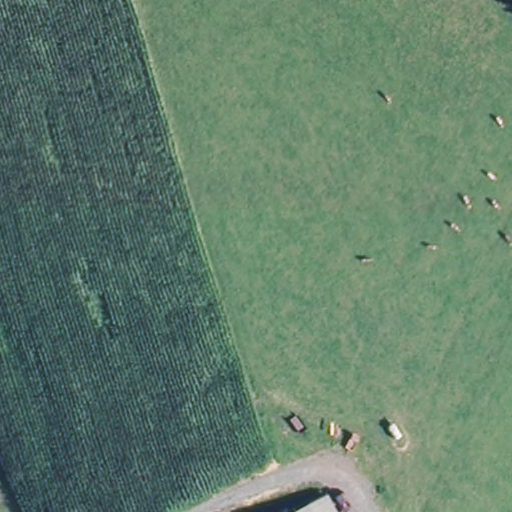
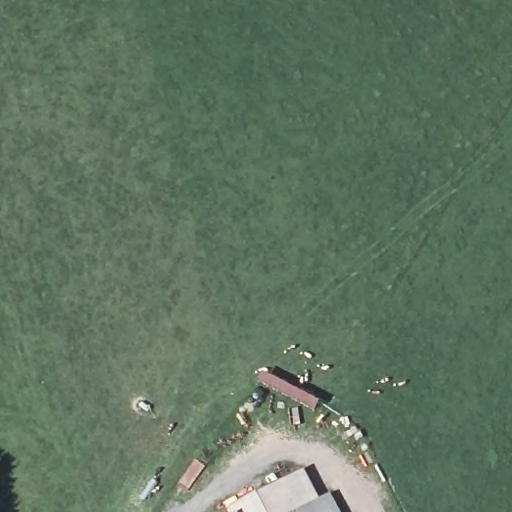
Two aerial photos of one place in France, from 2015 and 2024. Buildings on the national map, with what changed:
new [(317,500),(329,494),(338,512),(225,512),(301,471),(317,500)]
demolished [(335,512),(305,512),(329,500),(335,512)]

